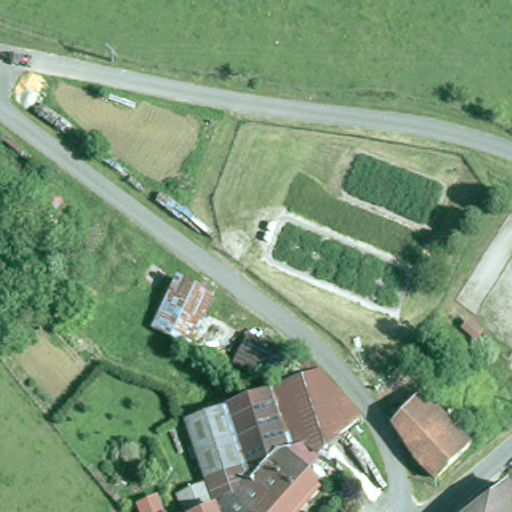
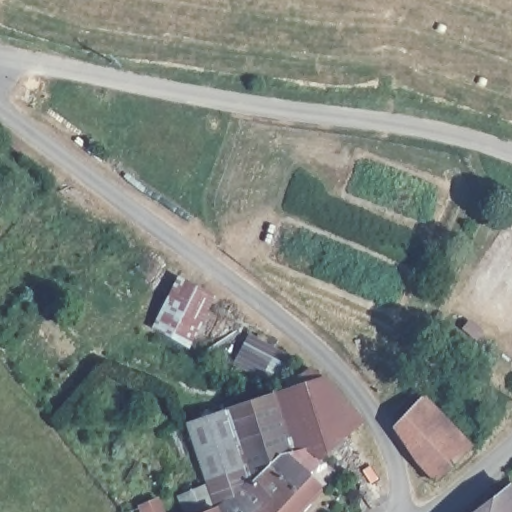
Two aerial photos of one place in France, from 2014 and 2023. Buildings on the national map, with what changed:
unchanged [(188,341),(182,343),(157,330),(155,326),(178,279),(214,300),(188,341)]
unchanged [(273,397),(310,372),(330,387),(347,404),(361,423),(319,462),(305,452),(283,457),(318,489),(305,503),(297,512),(217,512),(215,508),(187,426),(273,397)]
unchanged [(422,396),(470,448),(435,481),(409,452),(394,428),(395,426),(422,396)]
unchanged [(512,489),(512,512),(482,512),(512,489)]
unchanged [(138,504),(159,497),(164,512),(141,512),(138,504)]
unchanged [(215,508),(217,512),(206,512),(215,508)]

